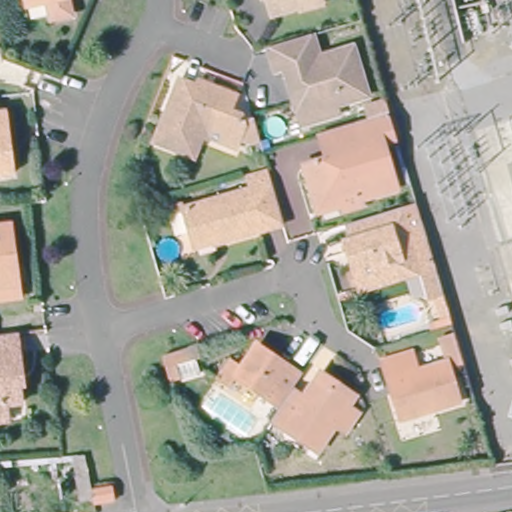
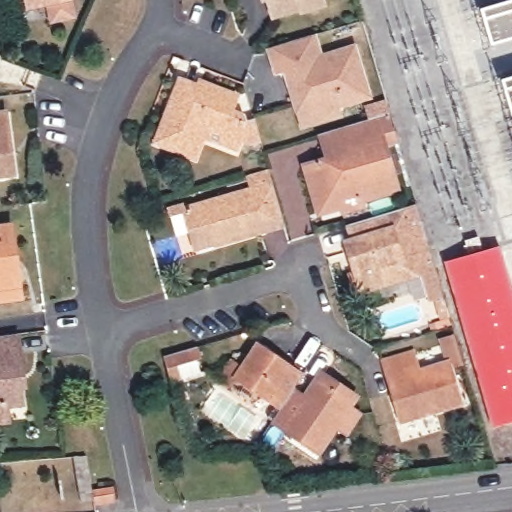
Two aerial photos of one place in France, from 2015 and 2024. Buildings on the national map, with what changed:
unchanged [(35,4),(34,0),(49,0),(35,4)]
unchanged [(80,13),(62,16),(59,0),(77,0),(80,13)]
unchanged [(304,9),(302,5),(277,12),(273,0),(323,0),(324,3),(304,9)]
new [(512,38),(490,45),(479,8),(505,0),(512,0),(512,38)]
unchanged [(305,124),(298,101),(288,68),(278,71),(272,47),(316,34),(324,59),(355,50),(370,96),(336,106),(338,114),(305,124)]
unchanged [(191,132),(182,156),(150,143),(162,112),(166,103),(175,75),(191,81),(193,77),(227,91),(221,107),(231,112),(233,118),(245,114),(251,137),(242,140),(230,136),(226,147),(191,132)]
unchanged [(345,204),(343,199),(321,207),(308,161),(330,154),(322,130),(344,122),(391,108),(398,133),(383,137),(396,183),(361,194),(363,198),(345,204)]
unchanged [(8,113),(16,175),(0,177),(0,113),(8,113)]
unchanged [(188,245),(178,214),(165,219),(162,209),(176,205),(178,210),(243,192),(239,177),(260,171),(275,222),(256,227),(258,232),(220,242),(189,251),(188,245)]
unchanged [(369,285),(354,240),(351,241),(345,222),(404,204),(418,201),(437,263),(424,268),(391,279),(369,285)]
unchanged [(0,291),(0,219),(7,218),(15,275),(16,290),(0,291)]
new [(499,244),(512,290),(512,313),(493,246),(499,244)]
new [(512,313),(512,389),(488,396),(448,258),(493,246),(512,313)]
new [(488,396),(512,389),(512,420),(493,426),(445,259),(448,258),(488,396)]
unchanged [(433,327),(447,322),(449,329),(435,334),(433,327)]
unchanged [(0,416),(0,332),(21,330),(25,366),(27,383),(21,383),(23,402),(9,403),(10,416),(0,416)]
unchanged [(451,368),(448,359),(443,360),(438,343),(452,338),(460,366),(451,368)]
unchanged [(167,359),(195,350),(202,376),(174,384),(167,359)]
unchanged [(278,415),(233,386),(227,394),(217,387),(228,371),(238,379),(254,355),(299,383),(291,395),(278,415)]
unchanged [(445,367),(457,406),(400,423),(383,366),(412,358),(417,375),(445,367)]
unchanged [(257,446),(270,428),(278,415),(291,395),(305,403),(317,386),(321,380),(352,402),(348,408),(345,413),(354,420),(341,438),(333,432),(315,458),(284,437),(272,455),(257,446)]
unchanged [(94,454),(96,480),(78,481),(77,456),(94,454)]
unchanged [(96,491),(114,490),(114,502),(97,502),(96,491)]

